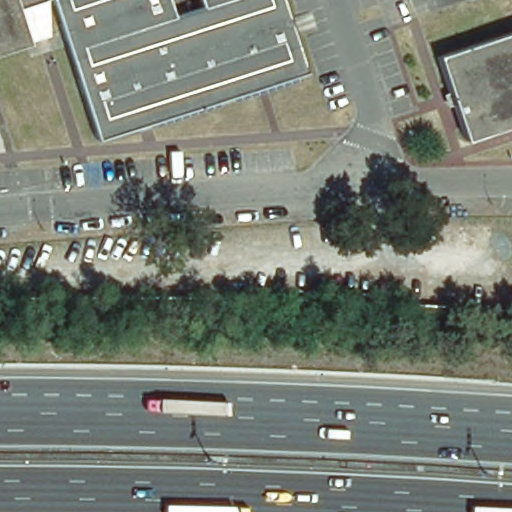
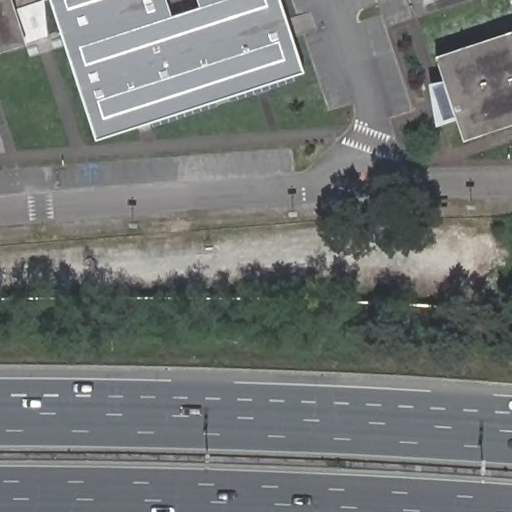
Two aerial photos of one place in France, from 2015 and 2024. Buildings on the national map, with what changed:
unchanged [(20,43),(0,49),(0,0),(40,0),(42,35),(20,43)]
unchanged [(92,138),(47,0),(274,0),(296,72),(92,138)]
unchanged [(463,139),(437,58),(512,33),(512,123),(463,139)]

